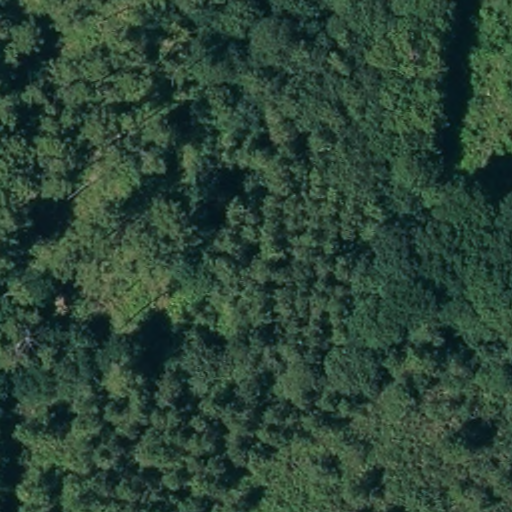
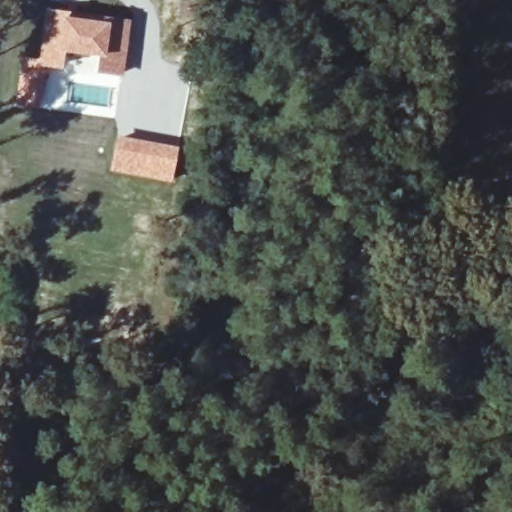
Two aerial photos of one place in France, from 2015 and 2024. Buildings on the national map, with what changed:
new [(60,51),(58,69),(39,66),(46,14),(65,16),(103,21),(125,25),(121,59),(118,77),(97,74),(99,56),(60,51)]
new [(115,134),(179,146),(172,183),(109,171),(115,134)]

